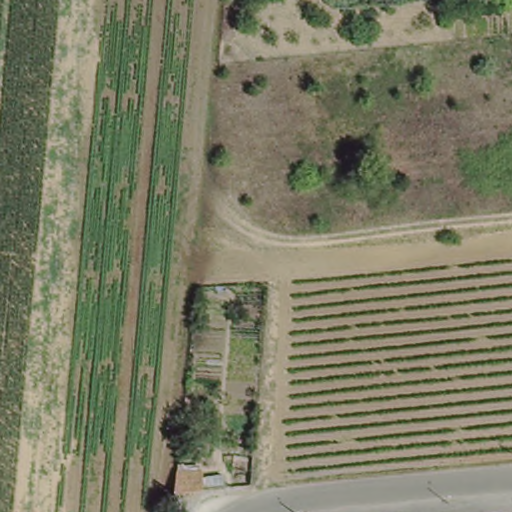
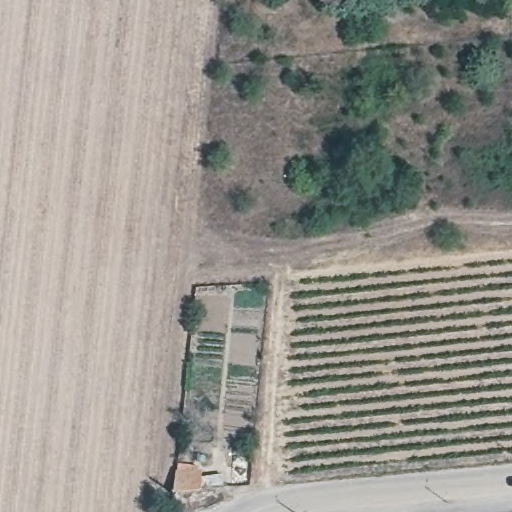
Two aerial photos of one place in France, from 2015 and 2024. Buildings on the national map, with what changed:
unchanged [(179,472),(207,473),(207,497),(175,500),(179,472)]

